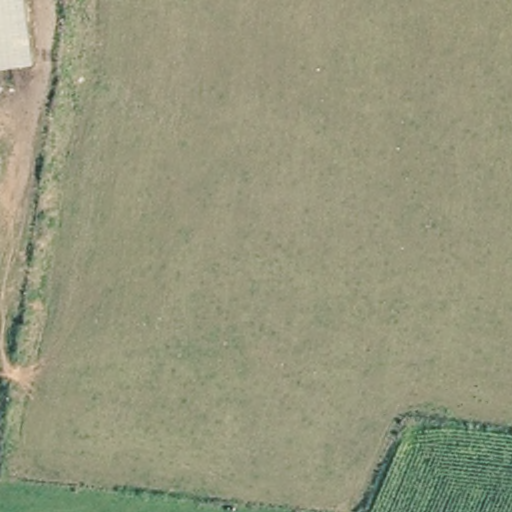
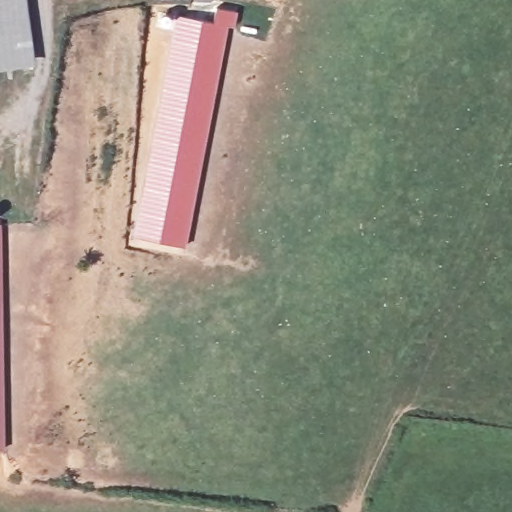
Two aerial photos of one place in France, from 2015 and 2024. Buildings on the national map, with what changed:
unchanged [(0,66),(0,0),(10,0),(20,63),(0,66)]
unchanged [(36,60),(20,63),(10,0),(27,0),(36,60)]
new [(135,199),(145,166),(163,68),(176,15),(213,22),(216,8),(237,11),(234,27),(228,26),(184,250),(128,243),(135,199)]
new [(5,461),(0,461),(0,236),(1,235),(5,461)]

